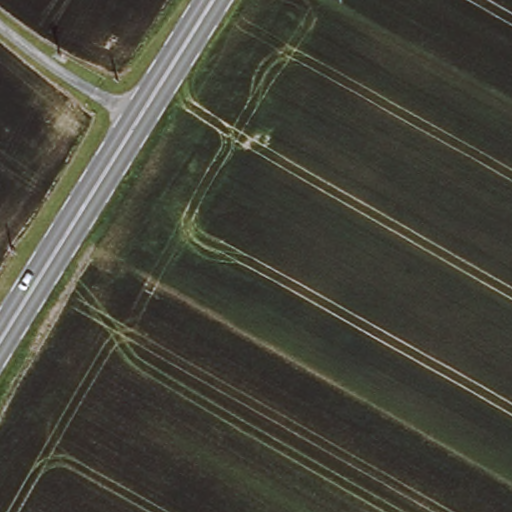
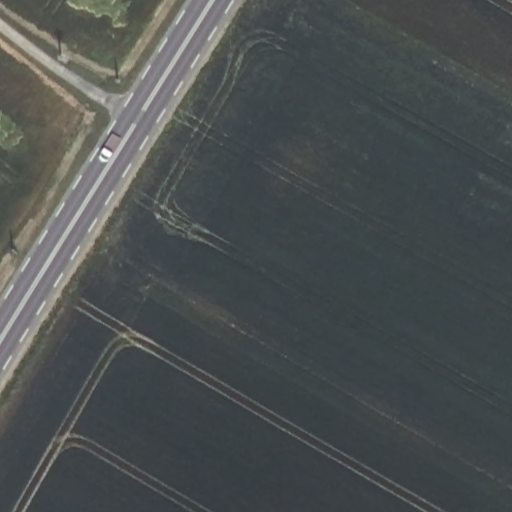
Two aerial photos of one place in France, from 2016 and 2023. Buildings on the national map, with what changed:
[]

